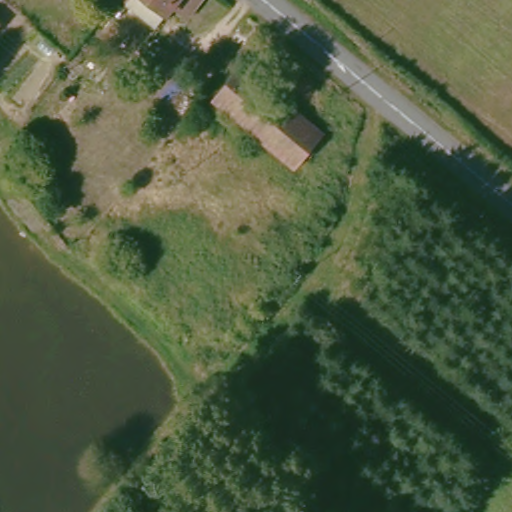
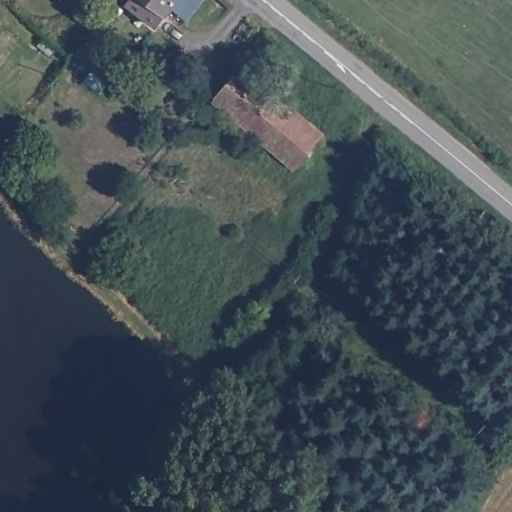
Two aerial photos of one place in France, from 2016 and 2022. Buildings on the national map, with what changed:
unchanged [(121,1),(122,0),(175,0),(152,27),(121,1)]
unchanged [(214,105),(240,73),(309,128),(282,161),(214,105)]

